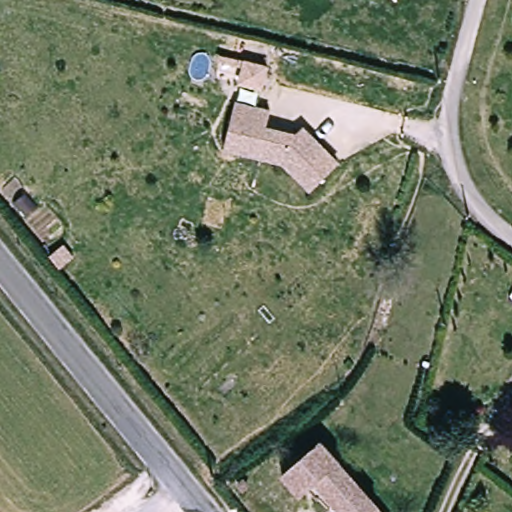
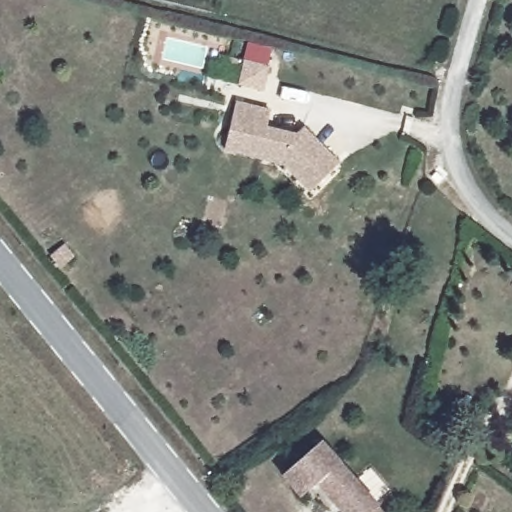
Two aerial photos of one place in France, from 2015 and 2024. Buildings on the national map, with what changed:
unchanged [(309,192),(282,162),(244,154),(224,149),(227,137),(236,104),(271,112),(266,129),(298,135),(304,129),(311,136),(338,167),(309,192)]
unchanged [(321,440),(390,512),(348,512),(318,480),(304,493),(284,474),(321,440)]

